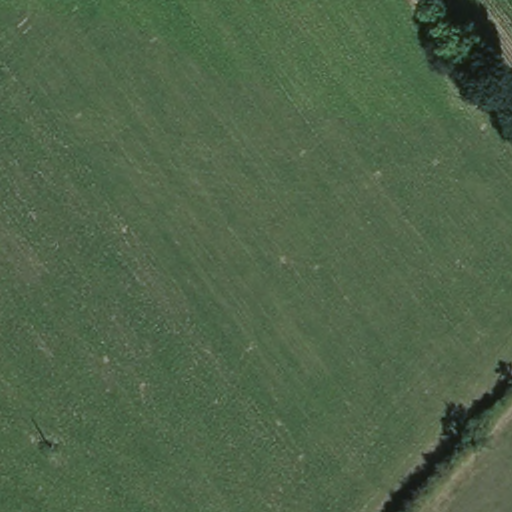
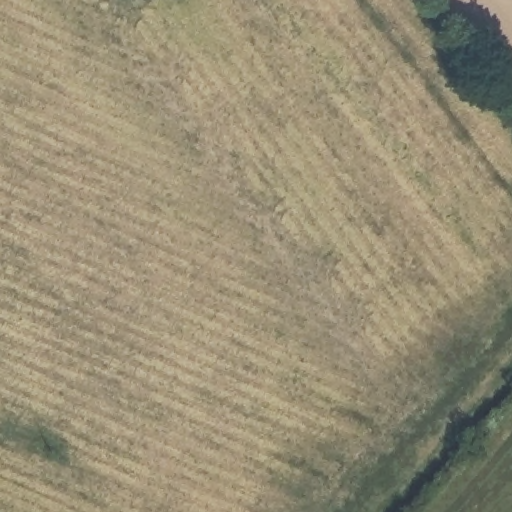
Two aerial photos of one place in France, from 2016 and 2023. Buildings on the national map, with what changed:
[]

